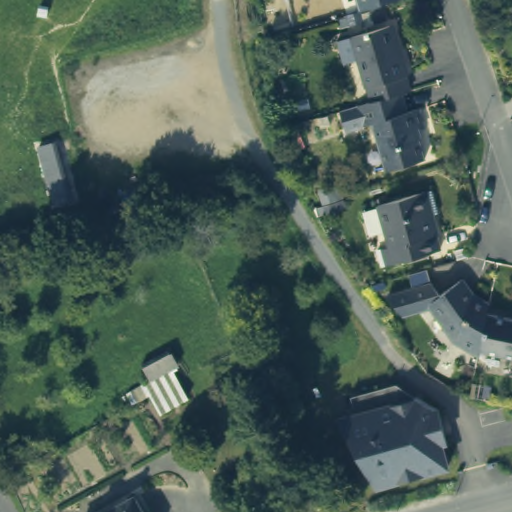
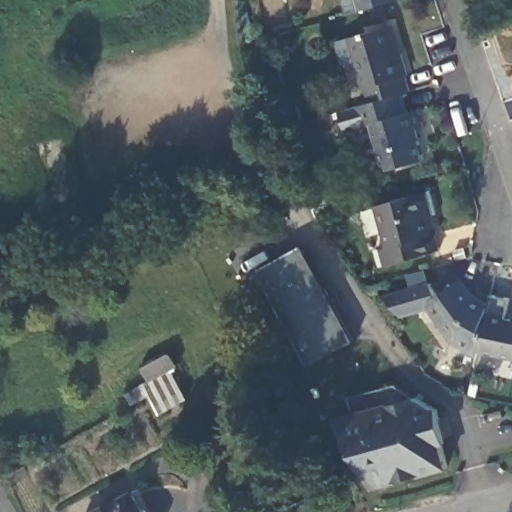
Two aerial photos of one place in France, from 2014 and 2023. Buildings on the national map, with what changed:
unchanged [(352,0),(397,0),(397,1),(393,3),(355,14),(352,0)]
unchanged [(363,87),(361,87),(347,38),(384,27),(393,56),(397,55),(403,75),(401,76),(404,89),(398,91),(367,100),(363,87)]
unchanged [(404,113),(416,110),(422,127),(413,130),(421,160),(383,170),(369,124),(357,127),(343,131),(336,109),(367,100),(398,91),(404,113)]
unchanged [(384,250),(390,248),(379,207),(418,195),(433,191),(439,214),(431,216),(441,251),(388,266),(384,250)]
new [(302,246),(354,340),(310,365),(258,270),(302,246)]
unchanged [(451,342),(426,308),(397,316),(383,296),(435,282),(442,291),(460,279),(471,295),(484,303),(482,313),(473,352),(472,357),(451,342)]
unchanged [(512,318),(512,360),(473,352),(482,313),(511,320),(512,318)]
unchanged [(161,414),(150,396),(133,405),(126,394),(150,380),(142,365),(167,351),(175,366),(170,368),(188,398),(161,414)]
unchanged [(356,401),(401,389),(421,402),(360,419),(356,401)]
unchanged [(443,415),(445,423),(440,425),(453,471),(380,491),(362,457),(373,455),(370,444),(357,447),(344,423),(360,419),(421,402),(443,415)]
unchanged [(142,512),(109,512),(134,498),(142,512)]
unchanged [(152,512),(151,512),(151,511),(152,512)]

